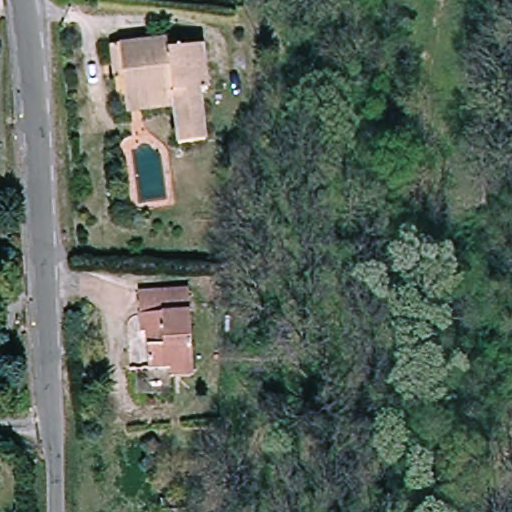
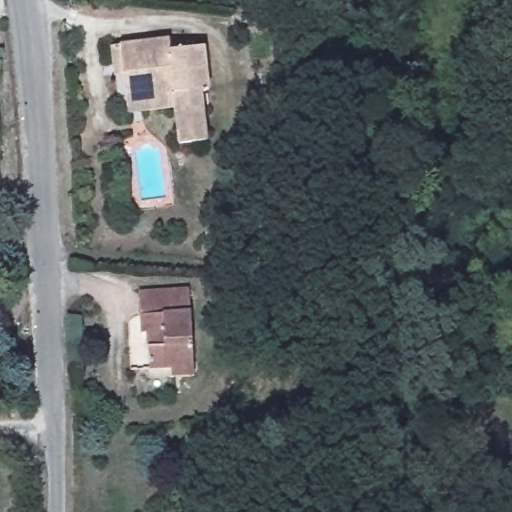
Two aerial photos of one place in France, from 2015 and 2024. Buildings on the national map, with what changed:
unchanged [(128,101),(128,73),(136,73),(136,64),(129,64),(128,45),(176,43),(176,53),(208,50),(211,97),(203,98),(206,148),(178,149),(175,111),(130,113),(128,101)]
unchanged [(181,381),(179,371),(153,372),(150,336),(143,337),(142,299),(191,295),(198,370),(199,380),(181,381)]

